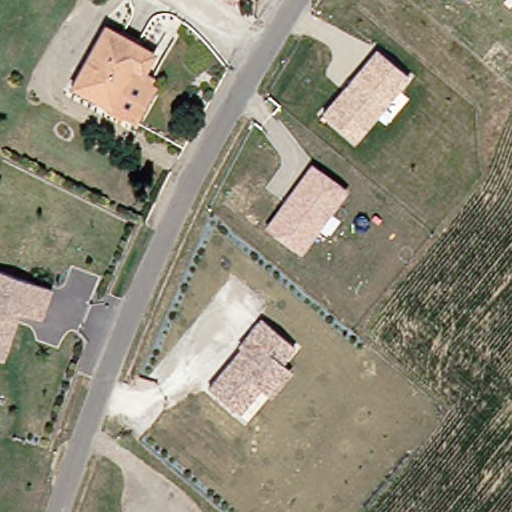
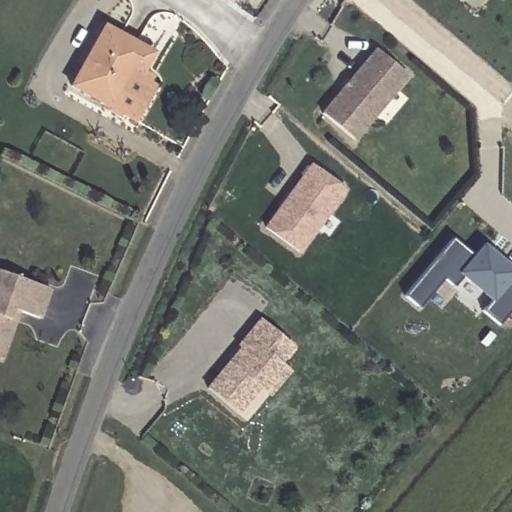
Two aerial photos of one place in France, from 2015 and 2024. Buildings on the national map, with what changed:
unchanged [(88,23),(143,50),(132,70),(124,66),(102,108),(57,84),(88,23)]
unchanged [(355,138),(322,112),(375,48),(410,74),(355,138)]
unchanged [(149,79),(128,121),(102,108),(124,66),(132,70),(149,79)]
unchanged [(349,191),(302,255),(263,226),(309,162),(349,191)]
new [(454,287),(443,278),(421,304),(407,293),(452,239),(472,255),(482,242),(512,267),(512,309),(499,324),(483,312),(491,302),(462,278),(454,287)]
unchanged [(0,351),(0,267),(47,282),(37,312),(15,305),(5,335),(1,349),(0,351)]
unchanged [(275,391),(264,383),(242,409),(212,386),(253,335),(251,333),(265,315),(298,343),(283,361),(292,368),(275,391)]

